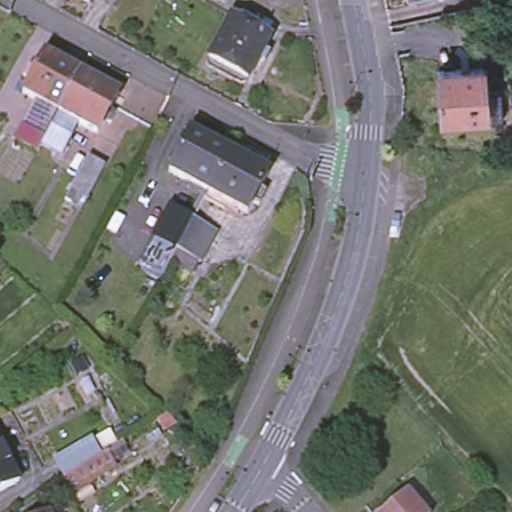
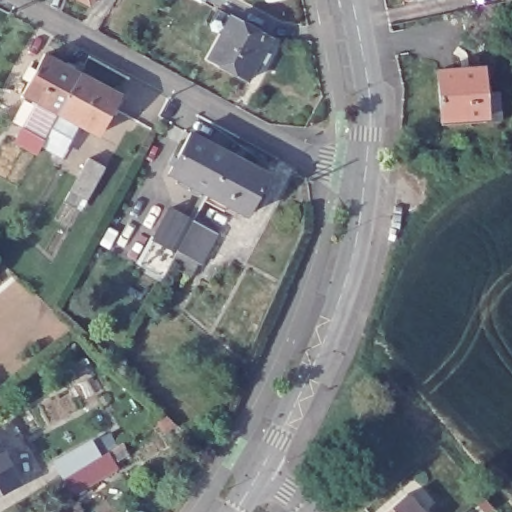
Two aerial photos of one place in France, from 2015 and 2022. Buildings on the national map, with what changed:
unchanged [(80,0),(92,0),(89,5),(80,0)]
unchanged [(271,39),(246,85),(239,86),(208,69),(206,64),(231,17),(271,39)]
unchanged [(56,119),(35,106),(21,99),(43,60),(78,79),(56,119)]
unchanged [(483,68),(486,118),(442,119),(439,69),(483,68)]
unchanged [(78,79),(117,99),(95,139),(73,128),(56,119),(78,79)]
unchanged [(35,106),(56,119),(73,128),(58,153),(43,144),(37,153),(13,141),(35,106)]
unchanged [(208,196),(169,175),(193,131),(231,152),(208,196)]
unchanged [(247,217),(208,196),(231,152),(271,173),(247,217)]
unchanged [(88,155),(106,166),(83,210),(63,199),(88,155)]
unchanged [(178,252),(156,240),(172,209),(194,222),(217,234),(200,265),(178,252)]
unchanged [(109,429),(118,445),(123,443),(129,452),(114,461),(118,471),(93,486),(96,494),(75,504),(52,461),(109,429)]
unchanged [(18,482),(0,492),(0,447),(18,482)]
unchanged [(411,489),(431,512),(385,512),(411,489)]

